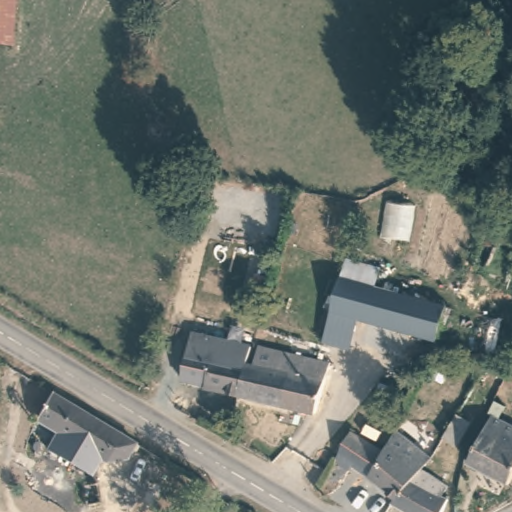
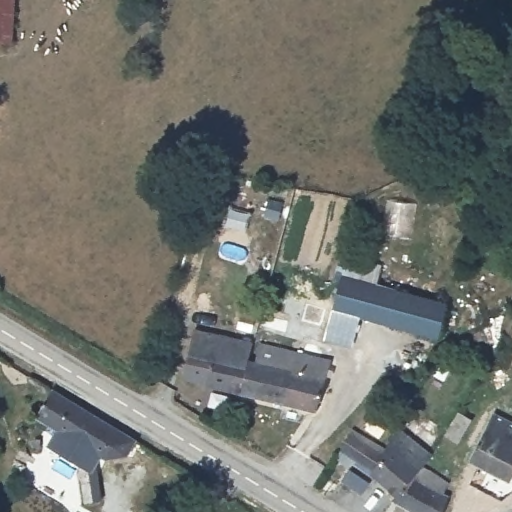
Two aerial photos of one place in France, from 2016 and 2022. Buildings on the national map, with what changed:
unchanged [(0,42),(0,0),(15,0),(12,42),(0,42)]
unchanged [(335,309),(348,254),(380,263),(375,281),(451,302),(436,334),(335,309)]
unchanged [(213,387),(213,384),(189,379),(198,332),(260,345),(255,364),(254,367),(248,393),(213,387)]
unchanged [(248,393),(254,367),(255,364),(264,365),(267,351),(331,363),(323,407),(248,393)]
unchanged [(140,440),(127,458),(135,487),(114,487),(50,446),(60,429),(33,412),(51,383),(140,440)]
unchanged [(446,432),(461,408),(476,418),(461,441),(446,432)]
unchanged [(493,413),(512,421),(512,478),(511,479),(469,462),(493,413)]
unchanged [(404,497),(358,463),(355,468),(343,459),(358,429),(392,449),(402,428),(435,452),(426,466),(422,471),(418,477),(404,497)]
unchanged [(404,497),(418,477),(422,471),(426,466),(447,479),(442,487),(455,495),(447,512),(417,512),(400,503),(404,497)]
unchanged [(90,483),(91,503),(79,503),(78,483),(90,483)]

